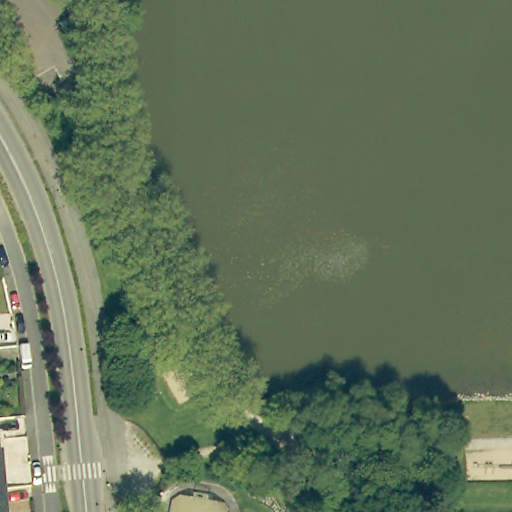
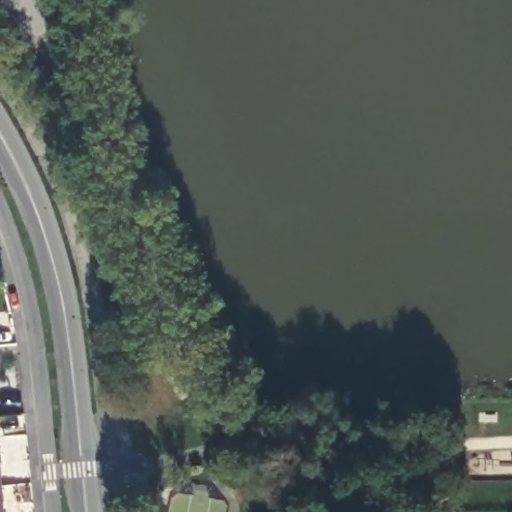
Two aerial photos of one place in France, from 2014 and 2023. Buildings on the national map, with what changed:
unchanged [(0,490),(0,440),(5,490),(7,512),(0,512),(0,490)]

